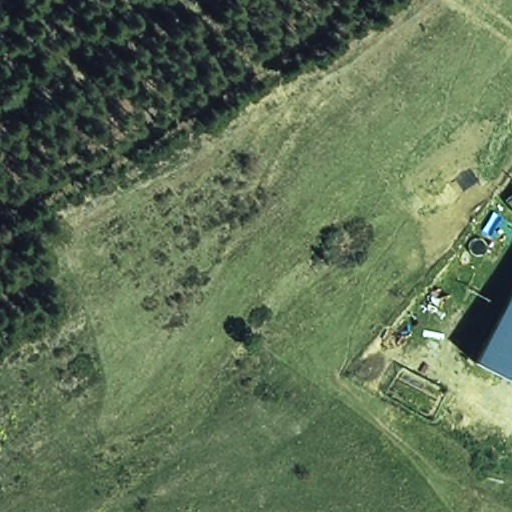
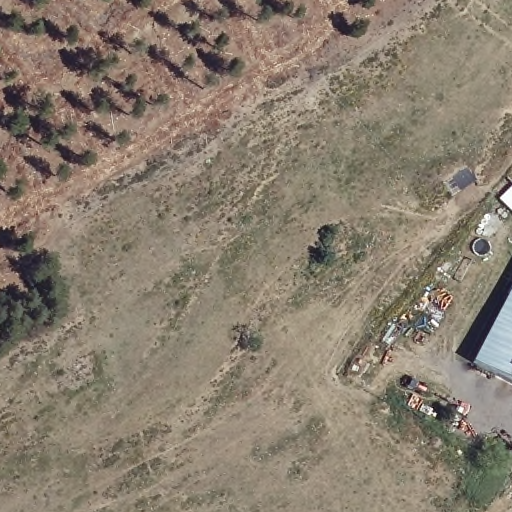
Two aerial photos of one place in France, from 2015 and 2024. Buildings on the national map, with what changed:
unchanged [(470,360),(512,286),(512,383),(470,360)]

